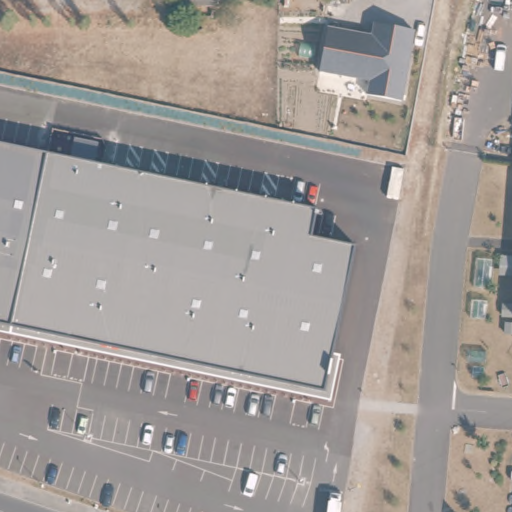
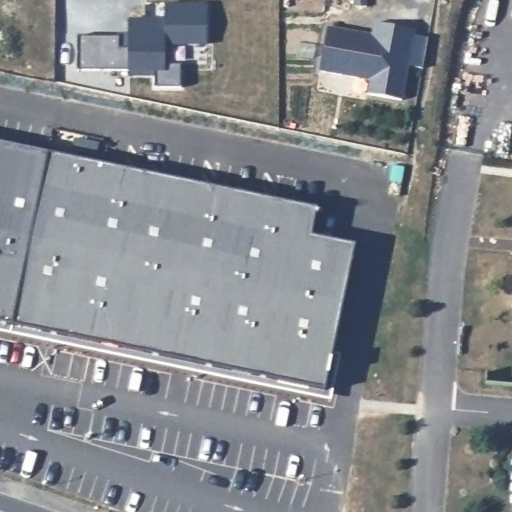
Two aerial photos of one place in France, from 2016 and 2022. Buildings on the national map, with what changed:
demolished [(182,6),(183,0),(212,0),(212,5),(182,6)]
new [(128,37),(129,17),(163,18),(164,3),(206,3),(205,45),(164,44),(164,62),(181,63),(181,88),(154,88),(154,79),(127,77),(127,70),(77,69),(77,36),(128,37)]
unchanged [(316,73),(324,25),(374,35),(375,23),(414,31),(400,100),(365,94),(369,81),(316,73)]
unchanged [(329,400),(0,332),(0,143),(316,209),(311,237),(351,246),(329,353),(339,355),(329,400)]

